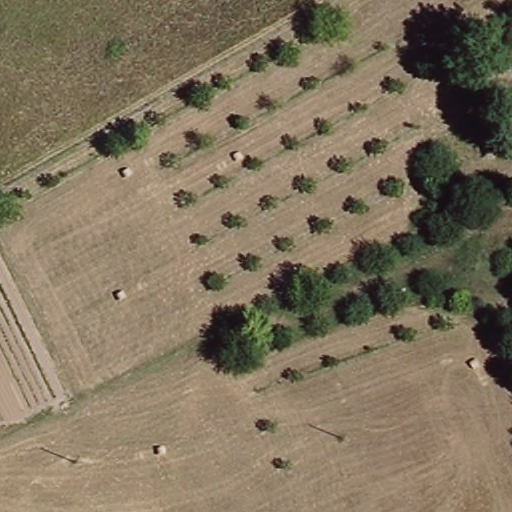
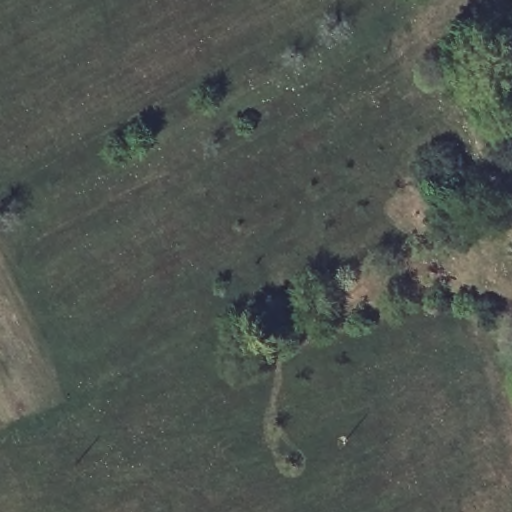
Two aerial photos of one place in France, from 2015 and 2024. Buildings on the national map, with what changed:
[]

